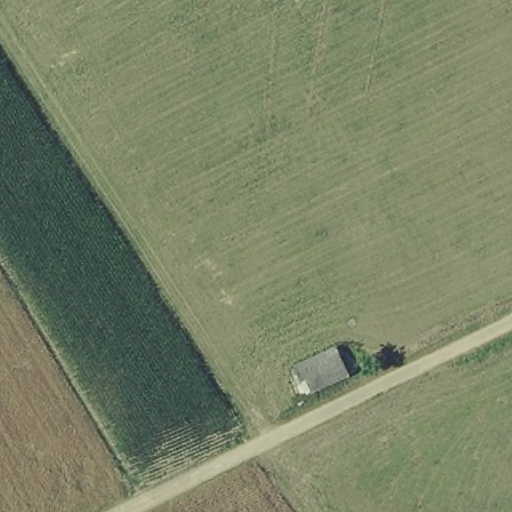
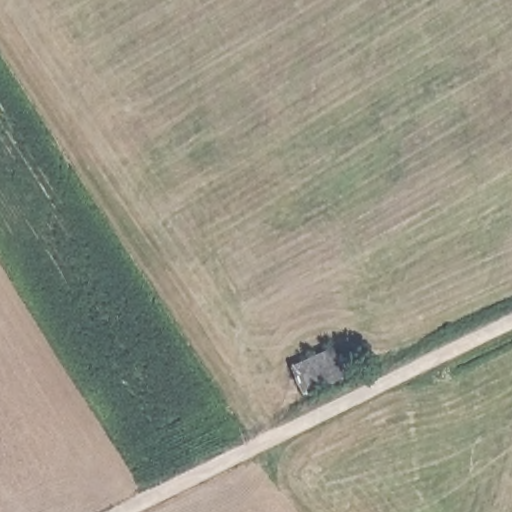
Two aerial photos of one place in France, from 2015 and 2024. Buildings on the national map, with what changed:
unchanged [(348,373),(304,393),(293,366),(336,346),(348,373)]

